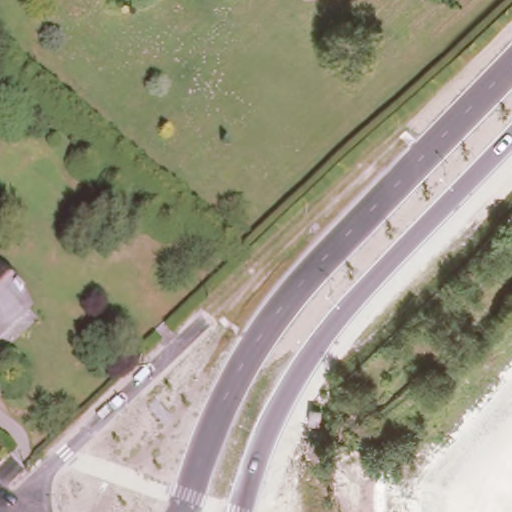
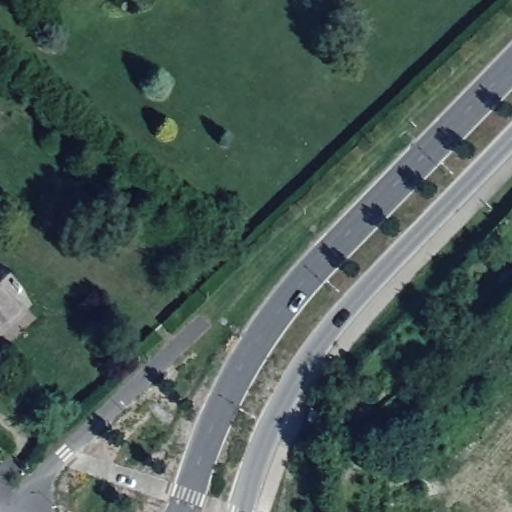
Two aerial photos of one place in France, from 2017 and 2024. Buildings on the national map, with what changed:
unchanged [(25,309),(0,333),(0,283),(25,309)]

